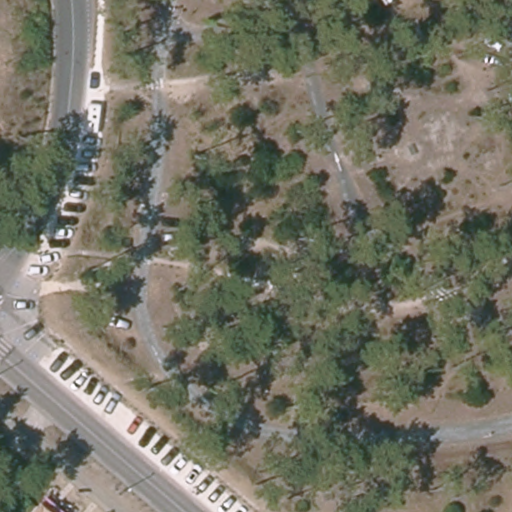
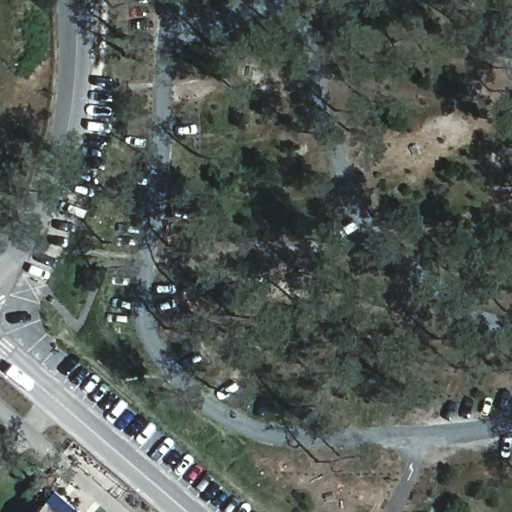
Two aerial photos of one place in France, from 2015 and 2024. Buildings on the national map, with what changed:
unchanged [(35,508),(40,512),(32,512),(35,508)]

